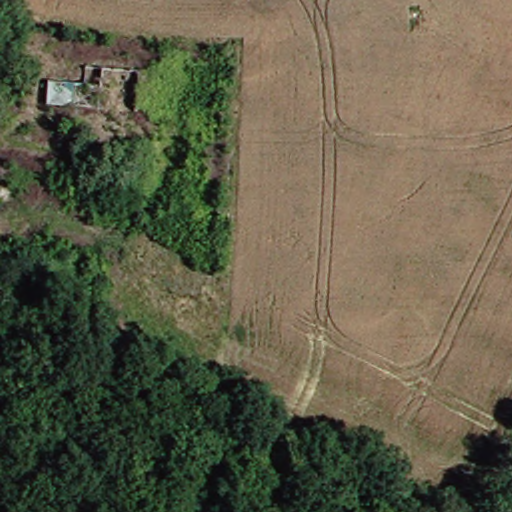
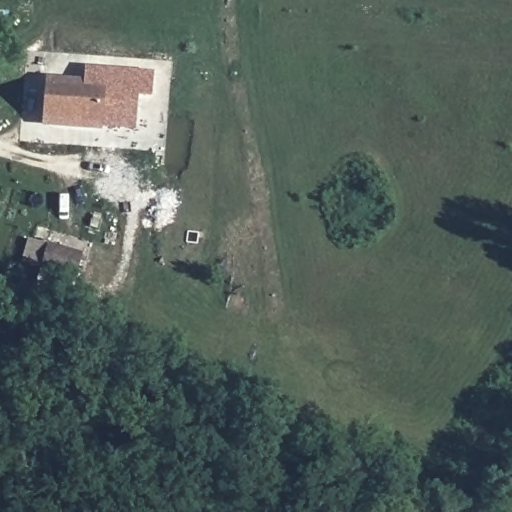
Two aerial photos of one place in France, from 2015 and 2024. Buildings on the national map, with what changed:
new [(100,128),(47,123),(51,81),(86,84),(87,68),(155,74),(152,98),(140,97),(137,114),(136,131),(100,128)]
demolished [(92,89),(90,114),(36,111),(38,87),(92,89)]
new [(29,239),(84,255),(76,281),(21,265),(29,239)]

